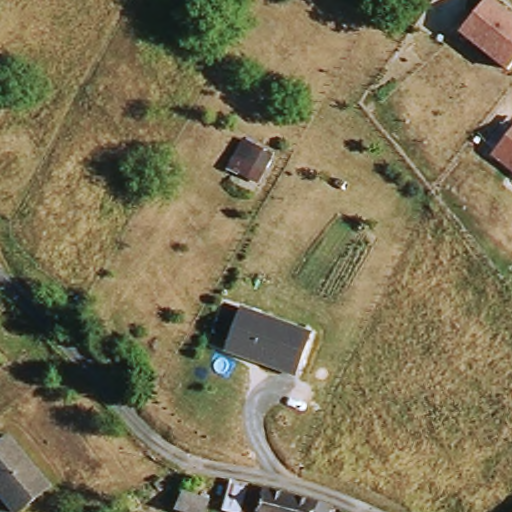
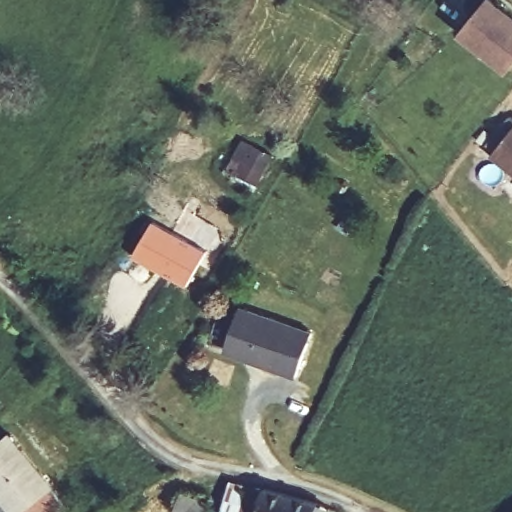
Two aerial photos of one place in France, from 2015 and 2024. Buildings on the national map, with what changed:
unchanged [(484,0),(498,0),(512,11),(512,61),(506,68),(460,28),(484,0)]
unchanged [(488,155),(512,125),(512,173),(488,155)]
unchanged [(257,182),(228,167),(243,140),(272,156),(257,182)]
new [(152,220),(205,252),(183,287),(130,256),(152,220)]
unchanged [(296,376),(213,347),(222,320),(234,325),(240,308),(311,333),(296,376)]
unchanged [(0,489),(0,447),(13,436),(55,487),(24,512),(19,512),(0,489)]
unchanged [(263,512),(230,512),(228,512),(236,482),(268,491),(263,512)]
unchanged [(268,491),(269,488),(323,503),(333,507),(332,512),(263,512),(268,491)]
unchanged [(205,512),(183,512),(176,510),(182,493),(208,503),(205,512)]

